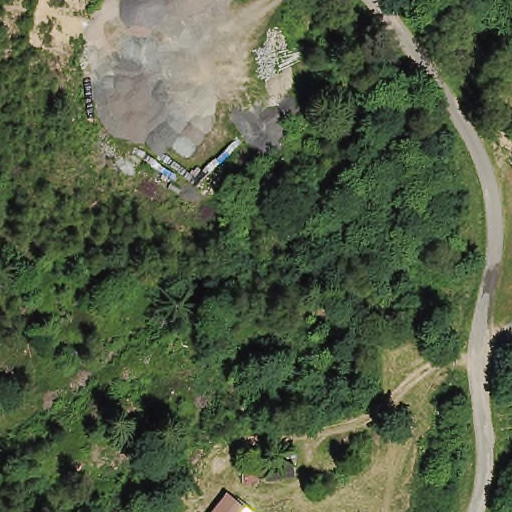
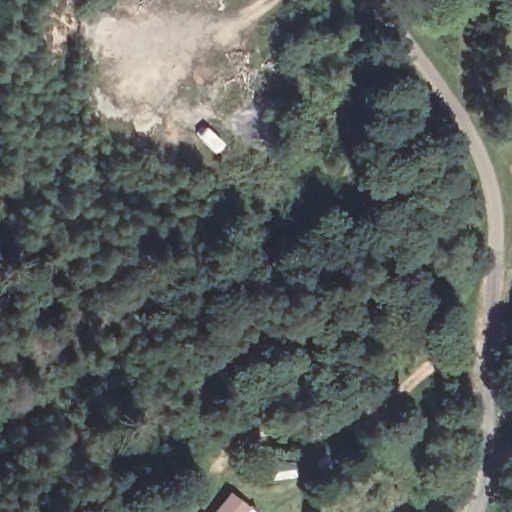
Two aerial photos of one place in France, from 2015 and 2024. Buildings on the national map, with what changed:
unchanged [(232,505),(238,498),(254,512),(212,512),(224,498),(232,505)]

